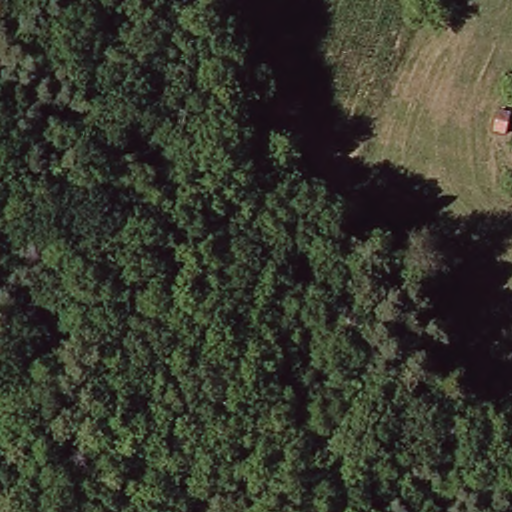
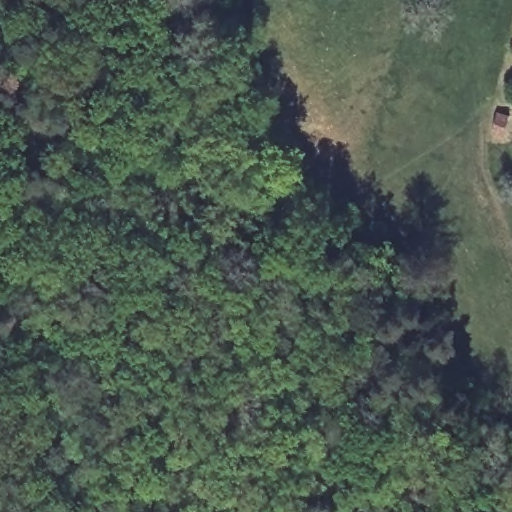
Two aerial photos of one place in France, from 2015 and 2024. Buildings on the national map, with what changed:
unchanged [(502,114),(512,118),(512,133),(511,137),(498,134),(502,114)]

